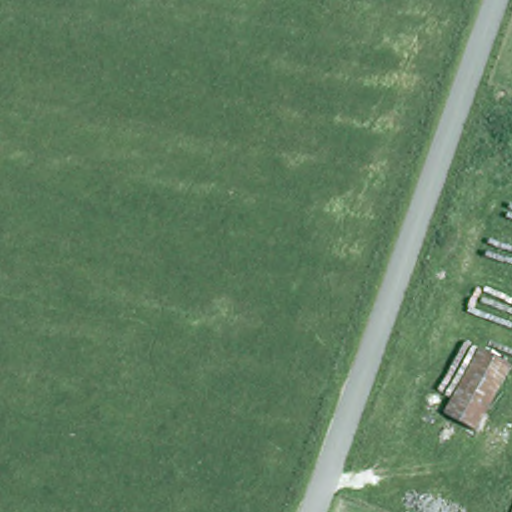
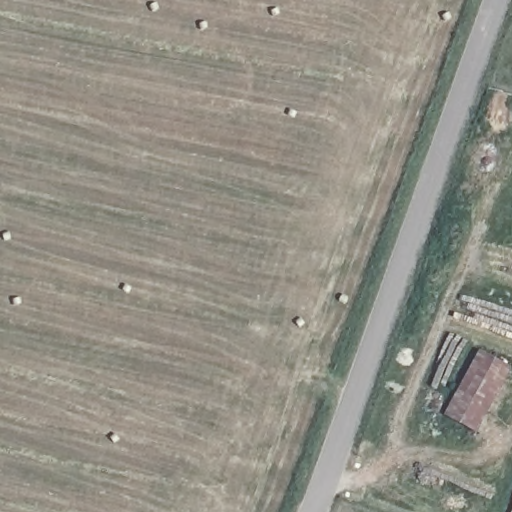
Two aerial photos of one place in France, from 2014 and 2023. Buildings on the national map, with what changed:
unchanged [(512,369),(475,433),(445,416),(480,353),(512,369)]

